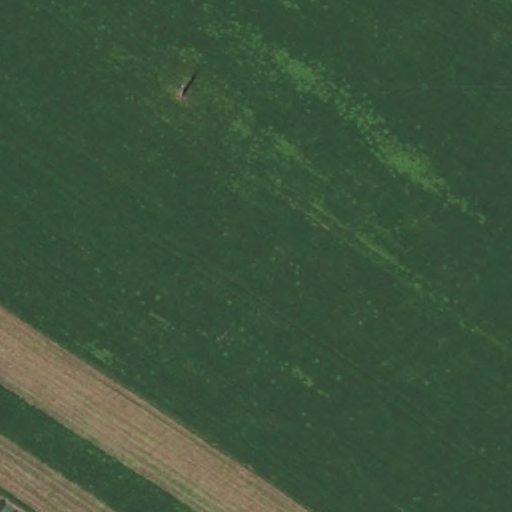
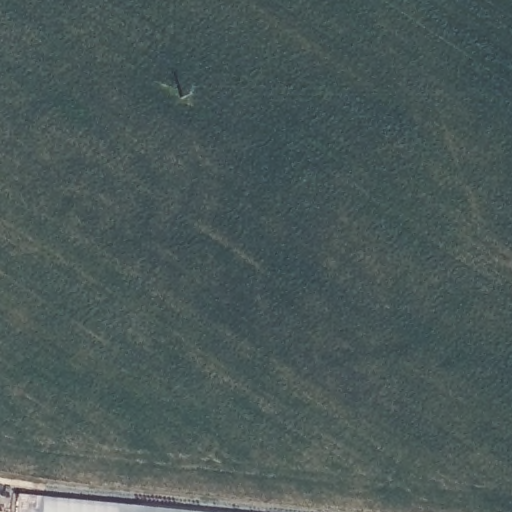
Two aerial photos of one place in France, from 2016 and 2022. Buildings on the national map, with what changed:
new [(189,512),(15,512),(17,495),(189,512)]

